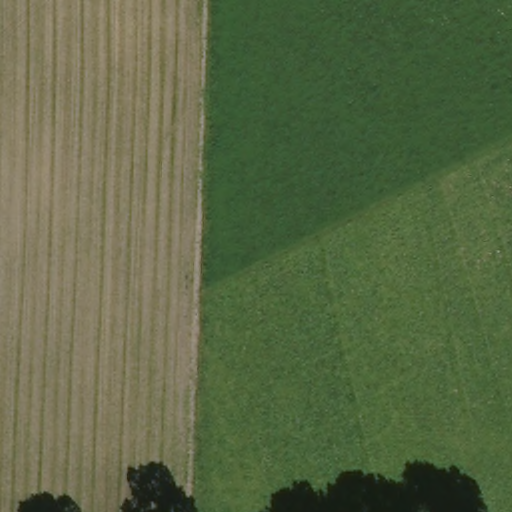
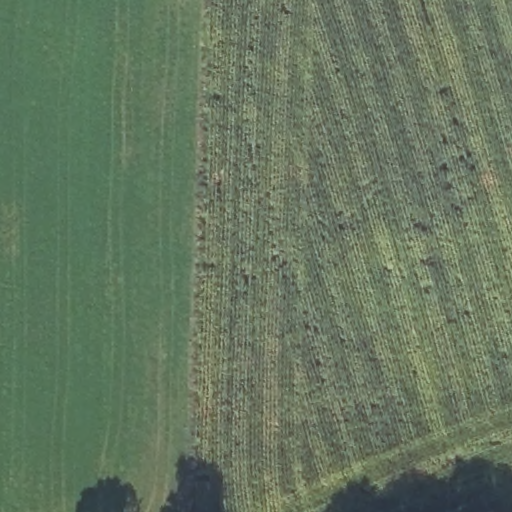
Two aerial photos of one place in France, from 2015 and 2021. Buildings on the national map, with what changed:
[]

